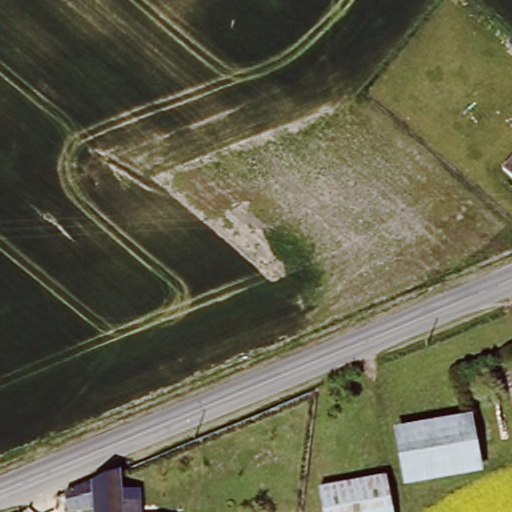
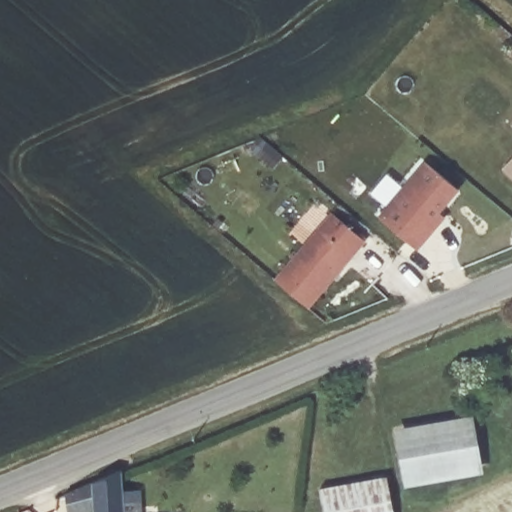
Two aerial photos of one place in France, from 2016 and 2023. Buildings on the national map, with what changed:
unchanged [(512,158),(512,182),(500,172),(512,158)]
new [(426,165),(464,195),(448,216),(450,217),(420,251),(380,220),(426,165)]
new [(333,217),(367,245),(312,311),(278,282),(333,217)]
unchanged [(395,428),(477,414),(487,474),(406,489),(395,428)]
unchanged [(92,508),(72,512),(67,512),(63,494),(125,468),(126,511),(135,511),(135,512),(92,512),(92,508)]
unchanged [(386,477),(395,512),(329,512),(325,486),(386,477)]

